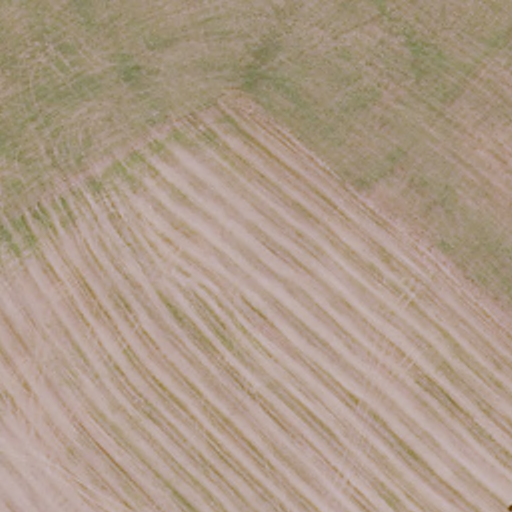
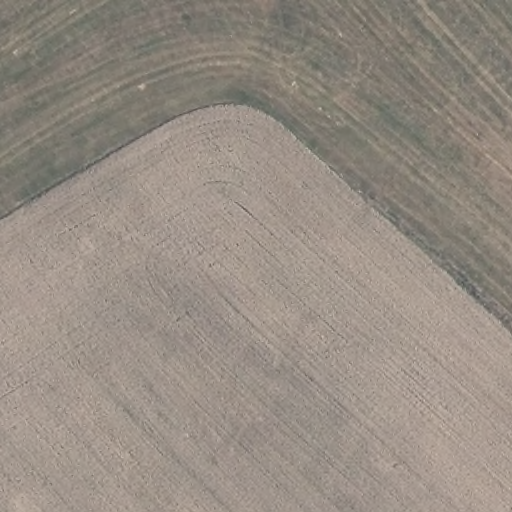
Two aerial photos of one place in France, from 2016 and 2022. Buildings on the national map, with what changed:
[]

